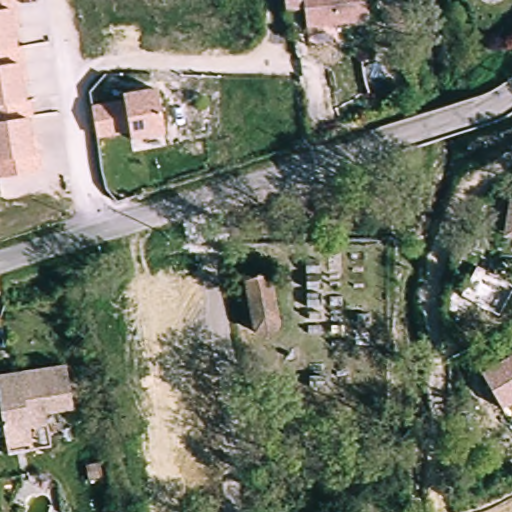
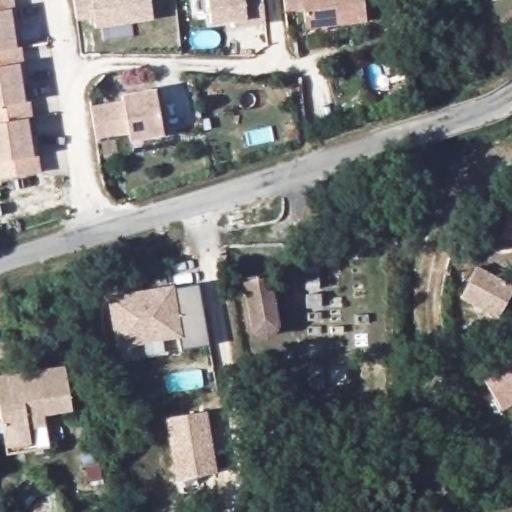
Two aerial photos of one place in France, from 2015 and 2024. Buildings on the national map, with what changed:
unchanged [(13,13),(15,32),(10,32),(13,51),(0,54),(0,0),(11,0),(13,13)]
new [(153,20),(95,30),(93,20),(78,21),(74,0),(151,0),(153,20)]
new [(266,24),(233,27),(233,20),(208,24),(206,0),(262,0),(266,24)]
unchanged [(307,29),(304,10),(285,13),(284,0),(324,0),(320,27),(307,29)]
unchanged [(324,0),(365,0),(368,22),(320,27),(324,0)]
unchanged [(29,120),(24,121),(0,125),(0,54),(13,51),(18,51),(21,66),(24,85),(19,85),(22,104),(27,103),(29,120)]
unchanged [(93,105),(125,100),(124,94),(158,89),(165,133),(131,139),(130,130),(98,134),(93,105)]
unchanged [(35,157),(38,175),(0,181),(0,125),(24,121),(28,140),(33,139),(35,157)]
unchanged [(498,249),(499,230),(501,211),(512,212),(512,249),(498,249)]
new [(474,267),(512,287),(512,289),(498,318),(459,297),(474,267)]
unchanged [(274,317),(274,323),(269,328),(263,331),(256,330),(251,326),(234,283),(260,275),(274,317)]
new [(174,289),(196,285),(207,344),(182,349),(179,337),(114,348),(106,297),(174,285),(174,289)]
unchanged [(512,356),(512,407),(504,413),(479,380),(512,356)]
unchanged [(40,416),(41,421),(23,425),(28,444),(3,448),(0,432),(0,381),(58,369),(66,410),(40,416)]
new [(218,475),(176,480),(166,418),(206,410),(218,475)]

